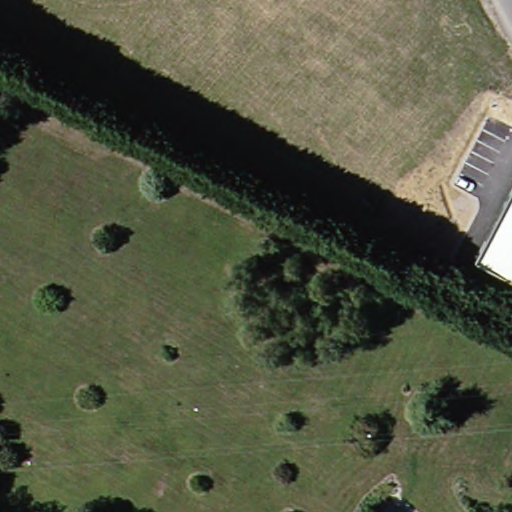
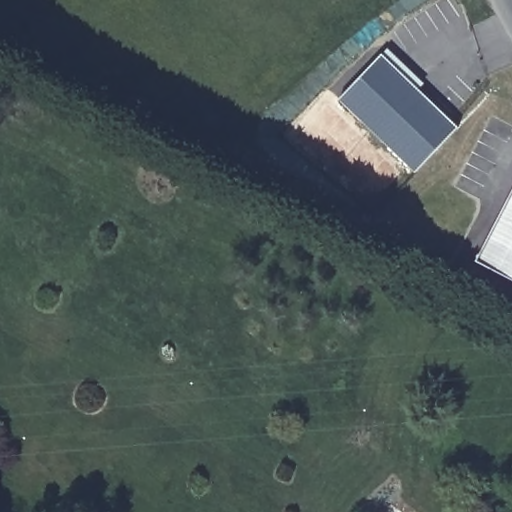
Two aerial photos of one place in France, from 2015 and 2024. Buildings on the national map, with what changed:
new [(380,54),(456,127),(414,171),(338,101),(380,54)]
unchanged [(475,260),(512,189),(512,282),(475,260)]

